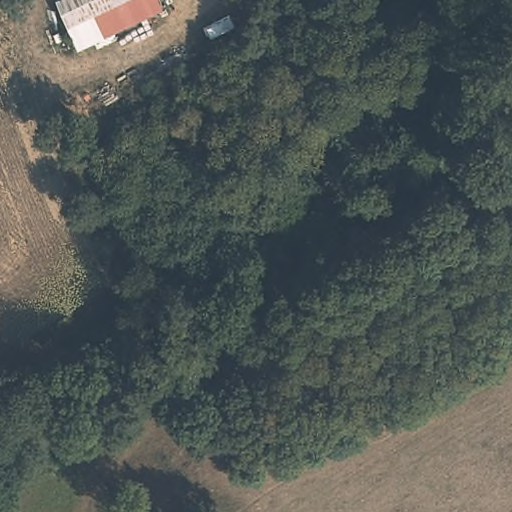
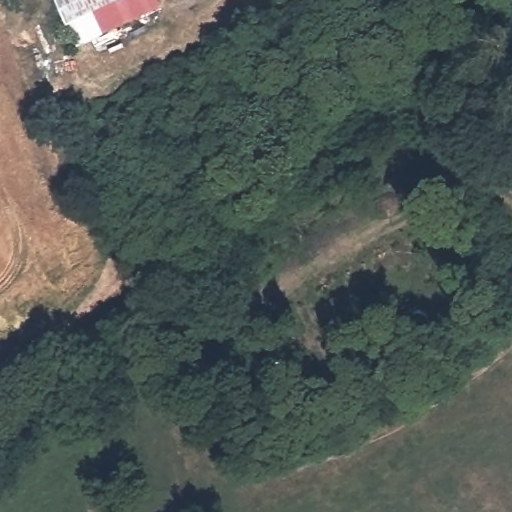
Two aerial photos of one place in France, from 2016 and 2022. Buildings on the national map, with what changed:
unchanged [(66,25),(54,0),(120,0),(66,25)]
unchanged [(160,9),(76,49),(66,25),(120,0),(156,0),(160,9)]

